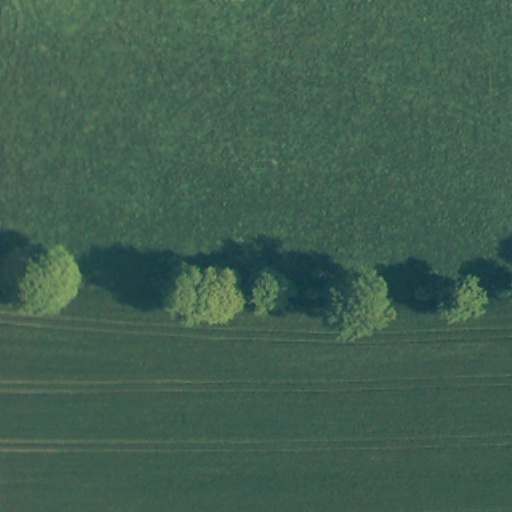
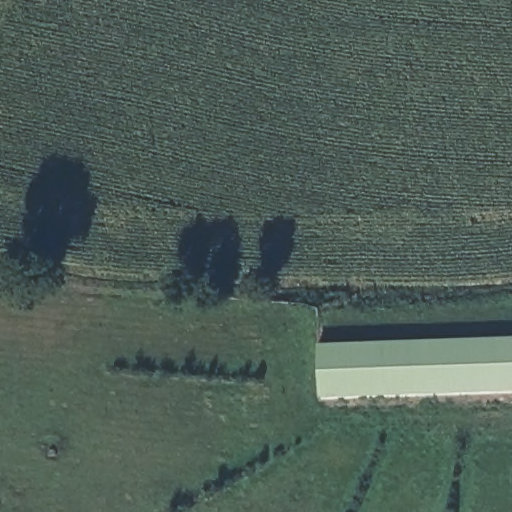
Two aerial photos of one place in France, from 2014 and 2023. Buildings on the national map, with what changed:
new [(322,345),(512,338),(512,392),(324,398),(322,345)]

